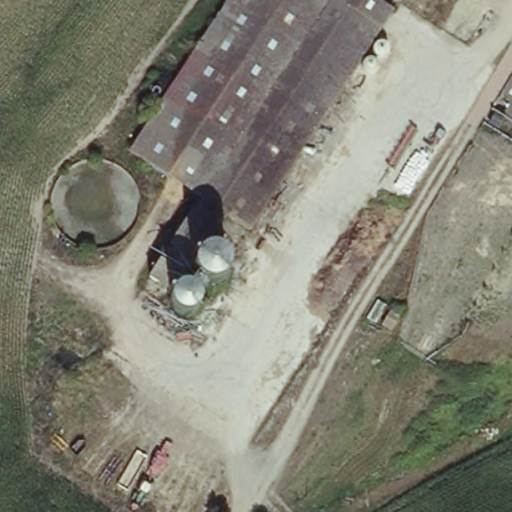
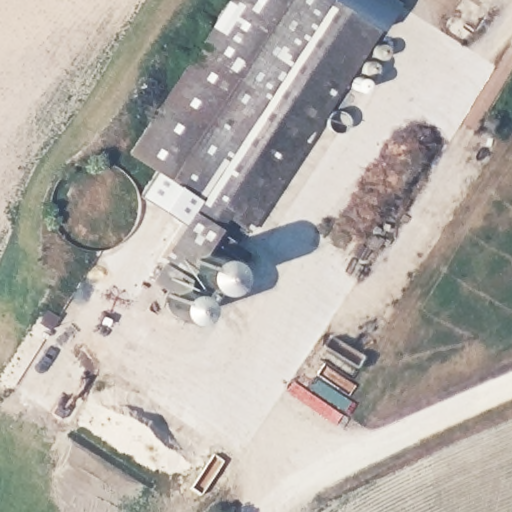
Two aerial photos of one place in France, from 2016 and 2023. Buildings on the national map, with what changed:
unchanged [(216,267),(208,277),(198,278),(193,272),(190,263),(184,272),(161,257),(200,199),(128,151),(227,0),(249,0),(352,61),(315,119),(243,227),(222,211),(199,250),(209,251),(216,258),(216,267)]
unchanged [(352,61),(249,0),(380,0),(389,6),(352,61)]
unchanged [(512,74),(512,122),(490,108),(512,74)]
unchanged [(192,284),(192,285),(193,286),(193,287),(193,288),(194,288),(194,289),(194,290),(194,291),(194,292),(194,293),(194,294),(194,295),(193,296),(193,297),(193,298),(192,298),(192,299),(191,300),(191,301),(190,301),(190,302),(189,302),(189,303),(188,303),(187,304),(186,304),(185,305),(184,305),(183,305),(182,305),(181,306),(179,306),(179,305),(178,305),(177,305),(176,305),(176,304),(175,304),(174,304),(174,303),(173,303),(172,303),(172,302),(171,302),(171,301),(170,301),(170,300),(169,300),(169,299),(168,299),(168,298),(168,297),(167,297),(167,296),(167,295),(167,294),(166,294),(166,293),(166,292),(166,291),(166,290),(166,289),(167,288),(167,287),(167,286),(167,285),(168,285),(168,284),(169,283),(169,282),(170,282),(170,281),(171,281),(171,280),(172,280),(173,279),(174,279),(175,278),(176,278),(177,278),(178,278),(179,278),(181,278),(182,278),(183,278),(184,278),(185,279),(186,279),(187,279),(188,280),(188,281),(189,281),(190,282),(191,283),(191,284),(192,284)]

